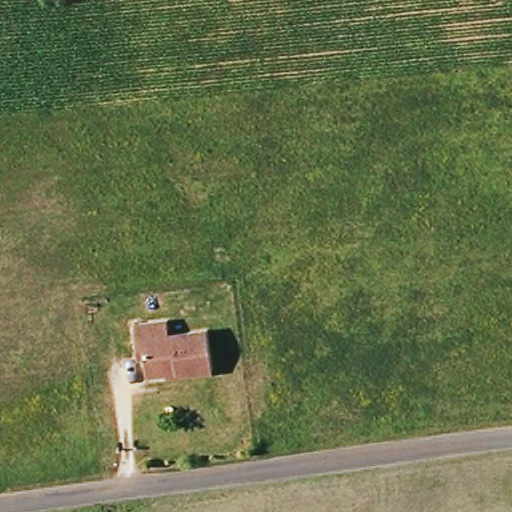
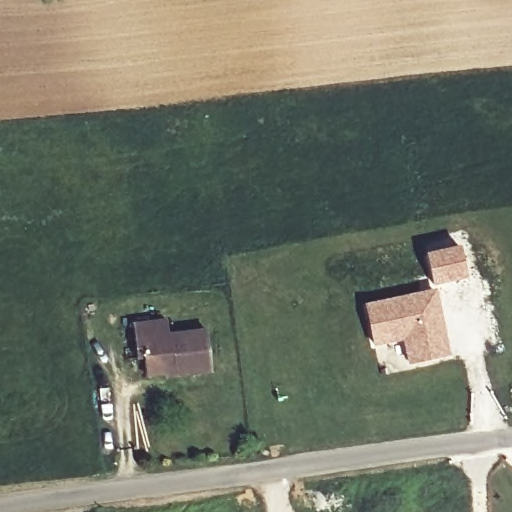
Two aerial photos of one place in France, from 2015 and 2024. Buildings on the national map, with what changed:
new [(459,246),(466,278),(433,286),(425,254),(459,246)]
new [(449,355),(407,365),(402,340),(371,347),(363,304),(434,289),(449,355)]
unchanged [(169,321),(172,335),(211,328),(218,368),(186,374),(181,371),(152,375),(147,340),(139,341),(137,326),(169,321)]

